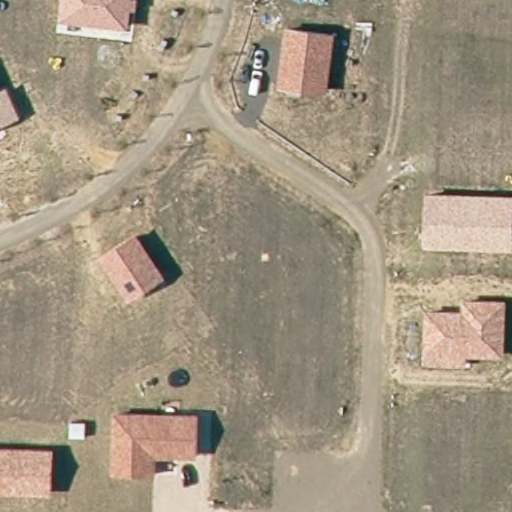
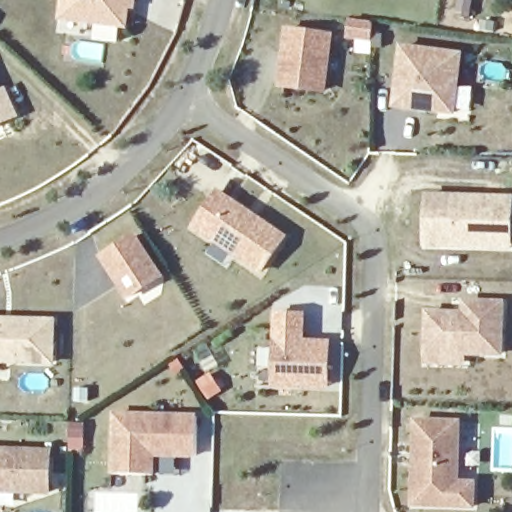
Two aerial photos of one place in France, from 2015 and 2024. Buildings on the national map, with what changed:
unchanged [(136,10),(131,10),(130,29),(61,22),(64,0),(138,0),(136,10)]
unchanged [(327,93),(277,88),(285,26),(335,34),(327,93)]
new [(403,46),(461,53),(454,111),(395,104),(403,46)]
unchanged [(6,86),(20,117),(0,126),(0,89),(6,86)]
unchanged [(218,190),(285,235),(262,269),(195,224),(218,190)]
unchanged [(512,250),(423,248),(425,193),(512,195),(512,250)]
unchanged [(128,302),(100,257),(137,233),(165,277),(128,302)]
unchanged [(461,300),(506,300),(505,358),(466,357),(466,365),(425,363),(425,311),(462,311),(461,300)]
new [(275,313),(301,314),(300,341),(327,342),(325,386),(272,384),(275,313)]
new [(54,320),(52,362),(0,360),(0,318),(54,320)]
unchanged [(156,476),(111,475),(113,412),(199,414),(197,459),(156,459),(156,476)]
new [(415,421),(458,422),(456,483),(473,483),(472,506),(413,505),(415,421)]
unchanged [(55,449),(51,496),(0,494),(0,447),(55,449)]

